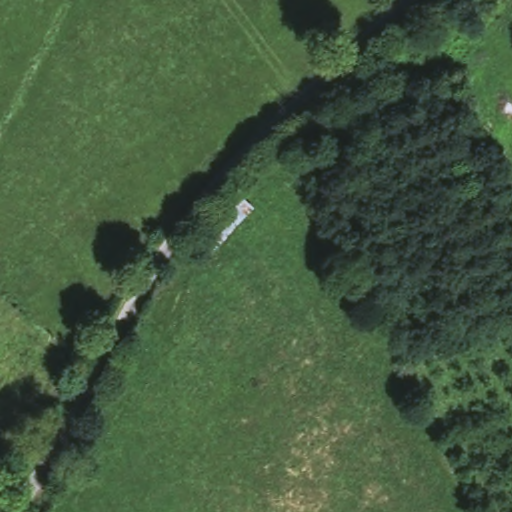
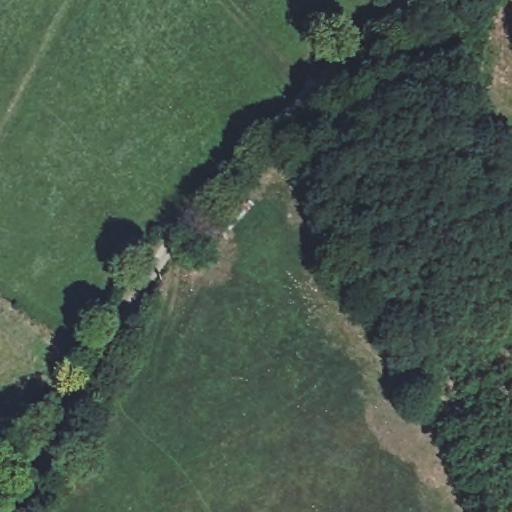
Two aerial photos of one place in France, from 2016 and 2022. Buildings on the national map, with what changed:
unchanged [(215,215),(243,185),(266,200),(245,220),(230,236),(215,215)]

